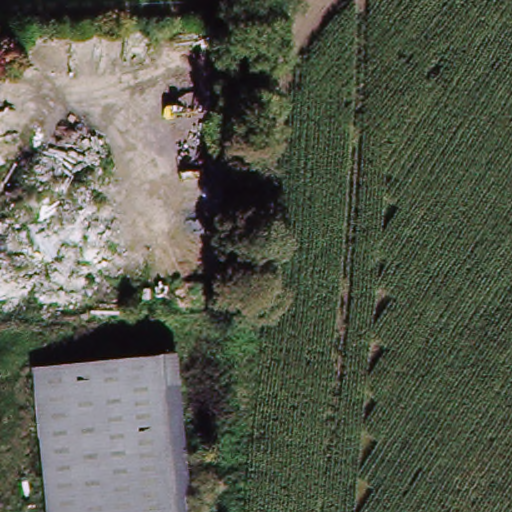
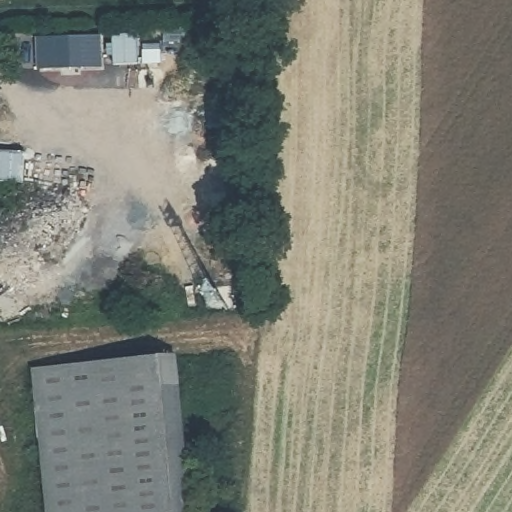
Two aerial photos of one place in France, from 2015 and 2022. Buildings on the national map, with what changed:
new [(36,33),(104,34),(104,64),(39,66),(36,33)]
new [(27,150),(24,184),(0,182),(0,147),(27,150)]
unchanged [(139,363),(151,512),(41,512),(35,372),(139,363)]
unchanged [(172,363),(186,512),(151,512),(139,363),(172,363)]

